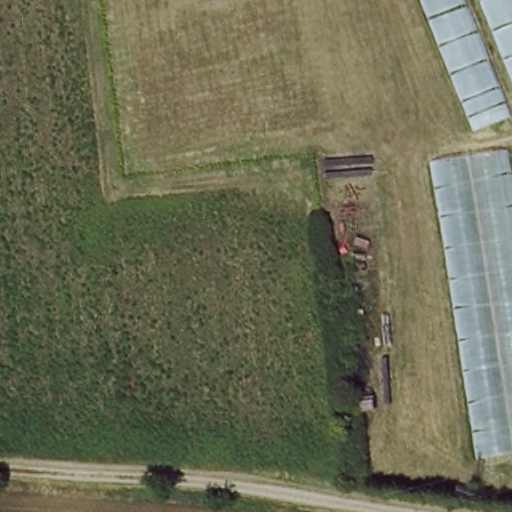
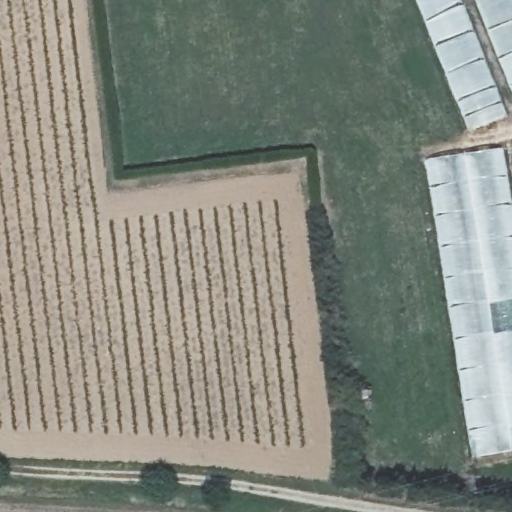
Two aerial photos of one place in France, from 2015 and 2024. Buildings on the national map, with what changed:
unchanged [(465,136),(413,0),(512,0),(512,120),(465,136)]
unchanged [(484,459),(432,159),(512,144),(512,455),(484,459)]

